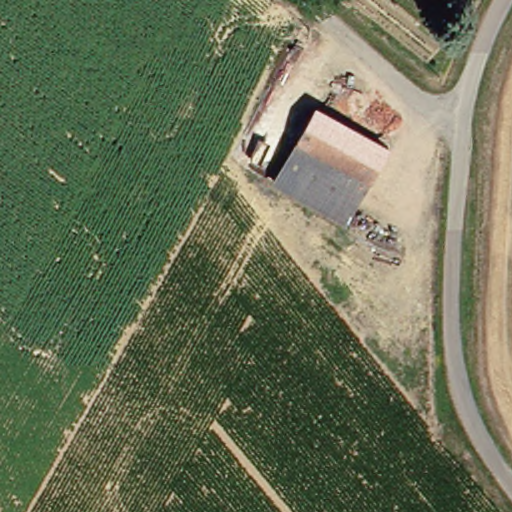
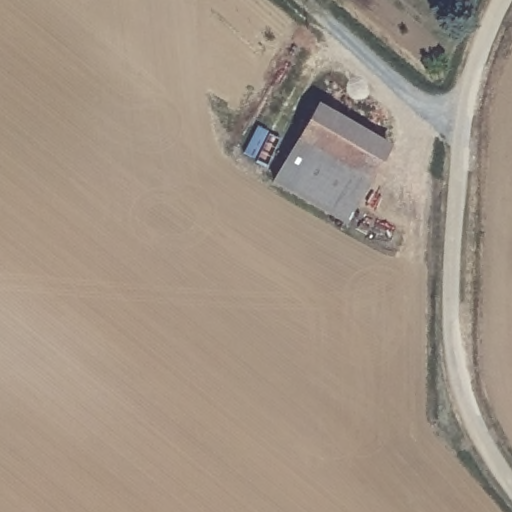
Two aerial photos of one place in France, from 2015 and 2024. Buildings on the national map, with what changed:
unchanged [(268,176),(316,106),(380,155),(335,223),(268,176)]

